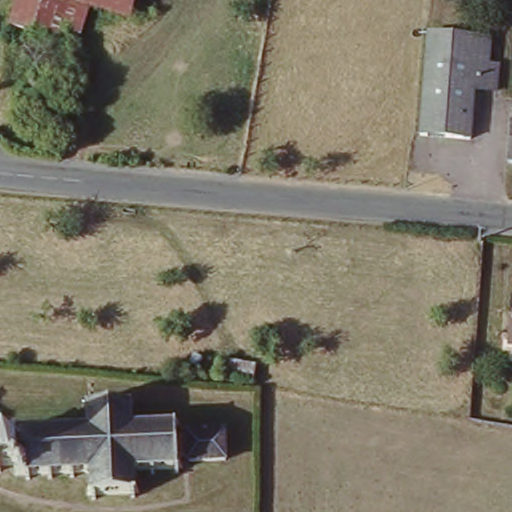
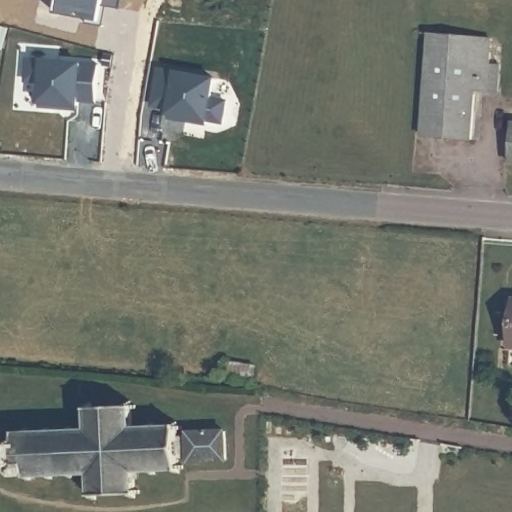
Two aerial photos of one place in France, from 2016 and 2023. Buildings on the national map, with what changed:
unchanged [(89,12),(75,48),(8,27),(17,0),(139,0),(133,22),(89,12)]
unchanged [(491,35),(488,64),(499,64),(498,89),(473,88),(469,139),(418,133),(427,29),(491,35)]
new [(55,105),(34,103),(37,78),(22,77),(24,55),(95,63),(91,99),(74,98),(74,103),(73,107),(55,105)]
new [(169,106),(154,102),(160,68),(214,78),(210,98),(225,100),(220,122),(206,119),(205,122),(184,118),(168,115),(169,111),(169,106)]
unchanged [(508,162),(512,120),(512,162),(508,162)]
unchanged [(512,303),(512,346),(506,345),(509,303),(512,303)]
unchanged [(248,364),(244,380),(222,378),(225,360),(248,364)]
unchanged [(189,467),(189,462),(180,461),(180,470),(161,471),(160,478),(154,478),(154,472),(134,470),(134,487),(142,486),(142,496),(135,495),(134,500),(128,501),(128,495),(96,495),(95,502),(88,502),(86,496),(82,496),(82,488),(89,487),(88,471),(74,473),(74,478),(65,478),(64,473),(51,472),(50,479),(45,479),(44,473),(27,473),(28,479),(23,479),(21,472),(14,472),(12,464),(0,463),(0,440),(10,439),(11,431),(21,430),(21,424),(29,424),(29,431),(41,433),(41,425),(51,425),(52,433),(67,430),(66,425),(74,424),(76,430),(89,431),(88,411),(79,409),(80,402),(86,404),(86,397),(94,398),(96,404),(124,402),(125,395),(131,396),(132,402),(139,402),(139,409),(131,408),(133,427),(151,428),(151,419),(160,419),(160,426),(180,426),(180,436),(189,436),(190,430),(224,431),(225,462),(189,467)]

